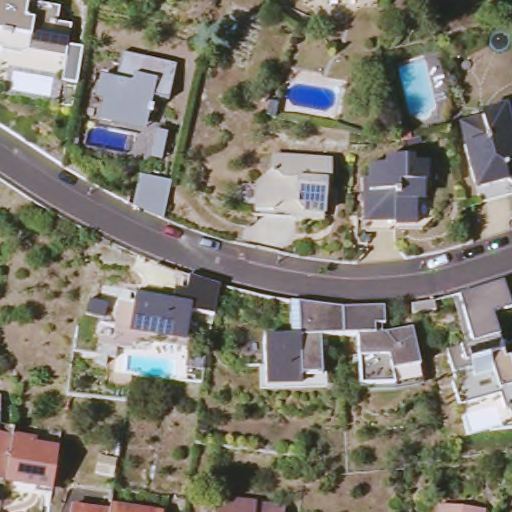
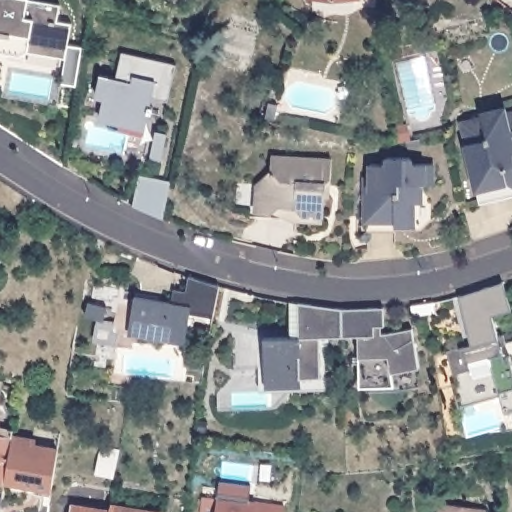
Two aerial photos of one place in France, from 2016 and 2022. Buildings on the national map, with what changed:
unchanged [(10,50),(2,53),(0,51),(0,50),(0,0),(28,0),(28,1),(53,5),(61,6),(58,22),(72,25),(67,56),(45,53),(30,50),(24,52),(10,50)]
unchanged [(122,123),(103,118),(107,98),(99,96),(104,75),(119,79),(125,52),(180,65),(172,100),(155,96),(150,121),(147,129),(122,123)]
unchanged [(273,120),(265,118),(268,103),(277,105),(273,120)]
unchanged [(481,182),(477,168),(480,162),(475,159),(471,145),(472,144),(468,131),(473,121),(493,116),(496,111),(510,106),(511,113),(512,112),(512,197),(487,204),(481,182)]
unchanged [(397,141),(394,125),(406,122),(409,138),(397,141)]
unchanged [(151,155),(157,128),(170,131),(163,158),(151,155)]
unchanged [(369,189),(372,189),(372,164),(388,164),(388,157),(413,156),(413,163),(435,163),(435,172),(427,181),(425,181),(425,189),(420,198),(420,223),(398,224),(398,219),(370,219),(369,189)]
unchanged [(284,209),(278,215),(258,214),(259,186),(274,171),(275,158),(335,160),(333,179),(328,184),(323,184),(323,195),(327,196),(327,216),(305,215),(300,209),(284,209)]
unchanged [(142,175),(173,182),(165,219),(135,205),(142,175)]
unchanged [(189,315),(183,341),(127,330),(112,327),(117,304),(132,307),(135,293),(160,298),(159,301),(172,304),(172,300),(175,291),(180,292),(186,294),(188,282),(189,279),(219,290),(212,320),(189,315)]
unchanged [(507,284),(512,304),(512,313),(495,318),(502,339),(507,338),(509,347),(504,348),(507,362),(512,360),(512,413),(507,415),(503,399),(462,410),(455,386),(459,385),(450,354),(475,347),(462,299),(480,294),(507,284)]
unchanged [(424,312),(412,314),(411,304),(422,303),(433,302),(435,311),(424,312)]
unchanged [(263,340),(300,339),(297,306),(320,308),(342,310),(343,337),(320,338),(322,377),(302,378),(302,386),(265,388),(263,340)]
unchanged [(395,392),(395,387),(360,388),(358,337),(343,337),(342,310),(373,308),(384,307),(385,325),(382,325),(383,333),(414,330),(418,370),(421,389),(395,392)]
unchanged [(15,435),(15,437),(14,443),(7,486),(0,485),(0,433),(15,435)]
unchanged [(14,443),(35,446),(33,451),(58,455),(52,494),(7,486),(14,443)]
unchanged [(284,512),(216,512),(217,498),(285,505),(284,512)]
unchanged [(443,505),(485,510),(485,512),(442,512),(443,505)]
unchanged [(142,512),(112,512),(112,508),(142,512)]
unchanged [(157,510),(162,510),(161,512),(156,512),(157,510)]
unchanged [(70,511),(91,512),(70,512),(70,511)]

